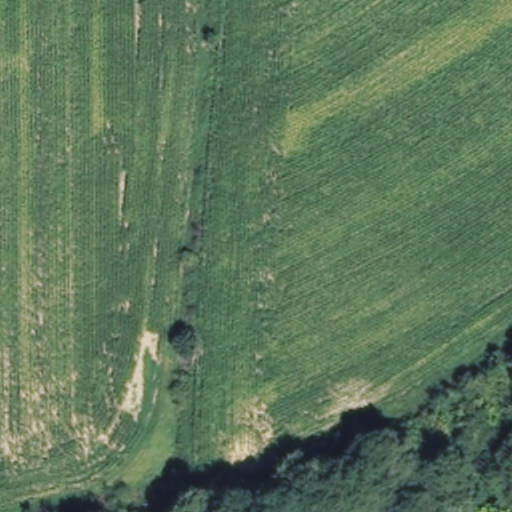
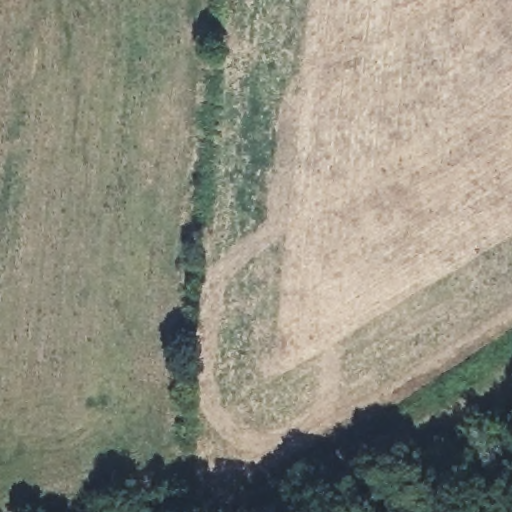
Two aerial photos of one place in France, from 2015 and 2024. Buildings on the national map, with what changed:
unchanged [(498,411),(512,431),(512,468),(507,471),(512,479),(512,491),(508,493),(497,478),(505,472),(473,427),(498,411)]

